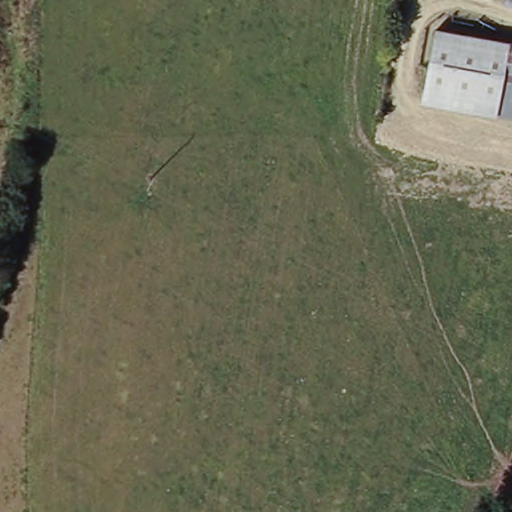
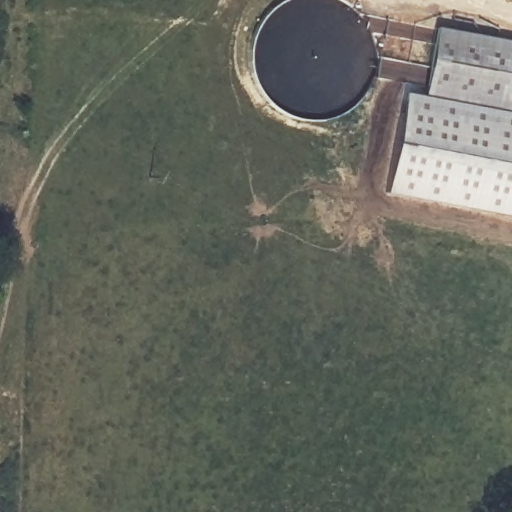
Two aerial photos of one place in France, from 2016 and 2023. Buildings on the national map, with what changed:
new [(504,0),(512,0),(512,6),(503,4),(504,0)]
demolished [(512,0),(512,1),(504,0),(512,0)]
unchanged [(512,112),(512,121),(496,118),(420,103),(434,35),(510,47),(499,110),(512,112)]
unchanged [(512,112),(499,110),(510,47),(512,47),(512,112)]
new [(420,103),(496,118),(512,121),(512,219),(384,195),(402,94),(422,96),(420,103)]

